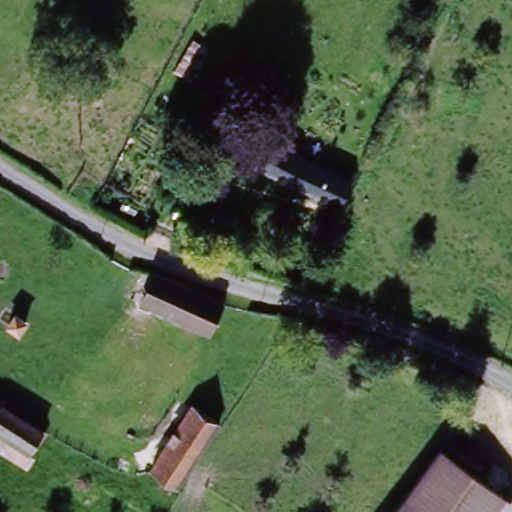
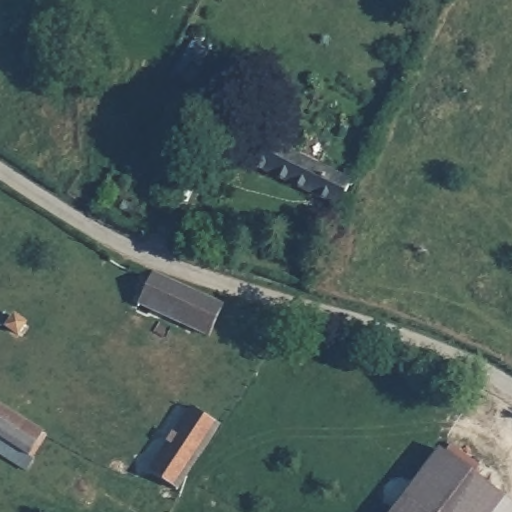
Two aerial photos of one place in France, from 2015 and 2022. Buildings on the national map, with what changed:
unchanged [(340,203),(242,153),(254,131),(351,181),(340,203)]
unchanged [(188,247),(192,232),(215,239),(211,255),(188,247)]
unchanged [(216,300),(205,334),(137,308),(150,273),(216,300)]
unchanged [(9,314),(24,322),(19,332),(4,326),(9,314)]
unchanged [(177,493),(144,475),(189,399),(221,418),(177,493)]
unchanged [(47,435),(29,465),(0,447),(0,406),(47,435)]
unchanged [(439,452),(503,501),(494,512),(392,512),(439,452)]

